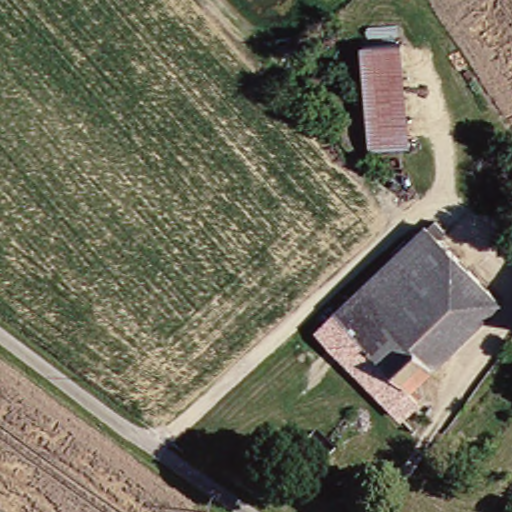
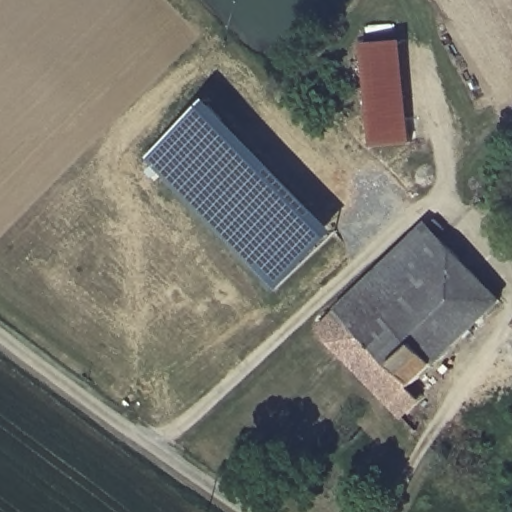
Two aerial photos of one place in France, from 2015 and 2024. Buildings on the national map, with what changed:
unchanged [(404,41),(413,141),(371,144),(363,44),(404,41)]
new [(277,291),(148,158),(209,97),(338,231),(277,291)]
unchanged [(419,382),(425,391),(418,397),(421,406),(408,416),(324,327),(433,221),(441,214),(451,224),(444,230),(506,300),(419,382)]

